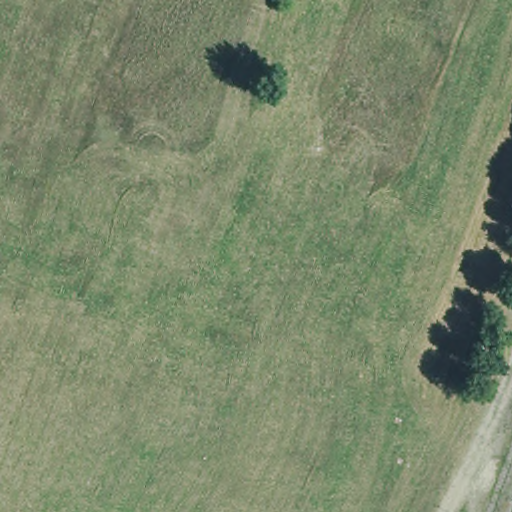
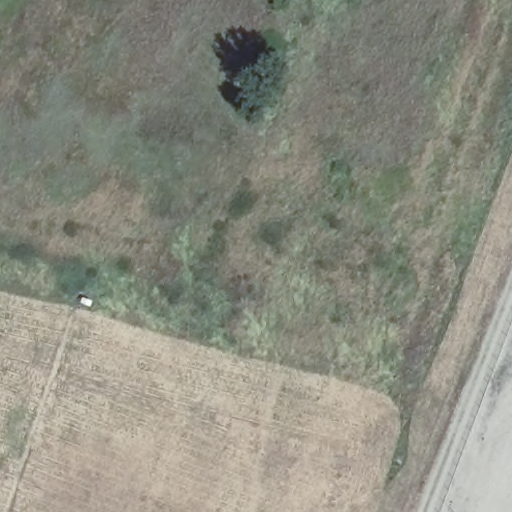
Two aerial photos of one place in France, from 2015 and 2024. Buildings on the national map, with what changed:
[]

